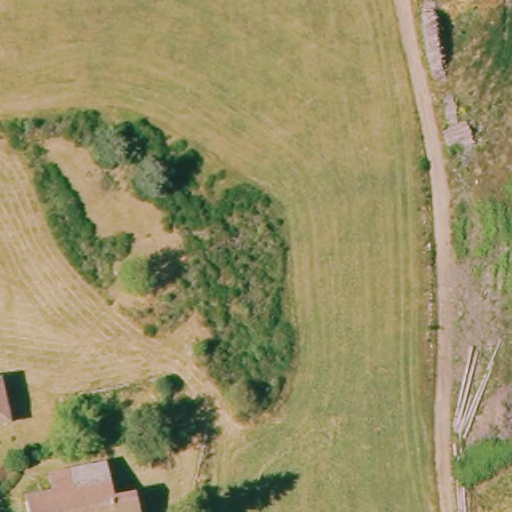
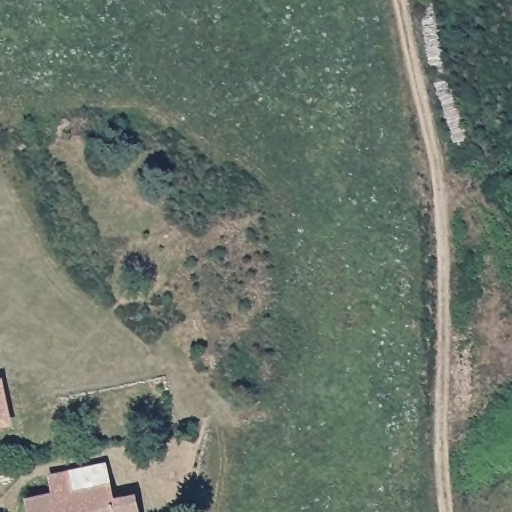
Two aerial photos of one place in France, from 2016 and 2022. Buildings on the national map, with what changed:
unchanged [(6,394),(12,434),(0,435),(0,395),(6,394)]
unchanged [(27,512),(26,508),(55,504),(52,488),(74,485),(109,480),(114,512),(27,512)]
unchanged [(141,512),(122,512),(141,510),(141,512)]

